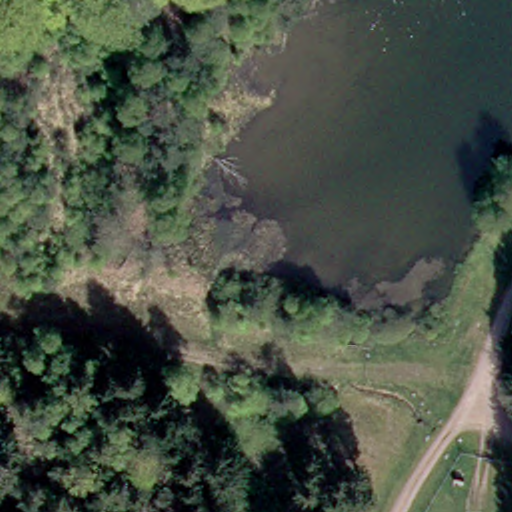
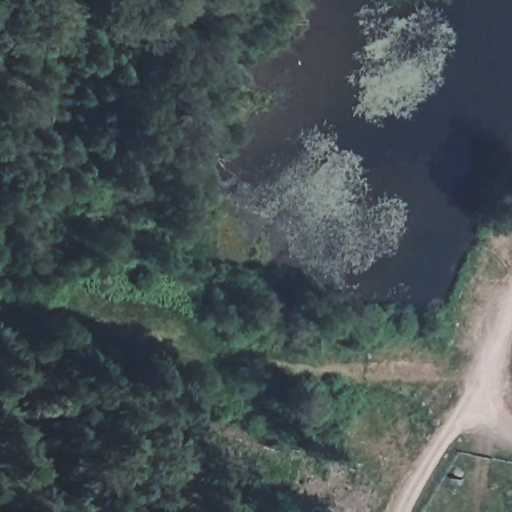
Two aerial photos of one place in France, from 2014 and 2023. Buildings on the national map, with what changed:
[]

